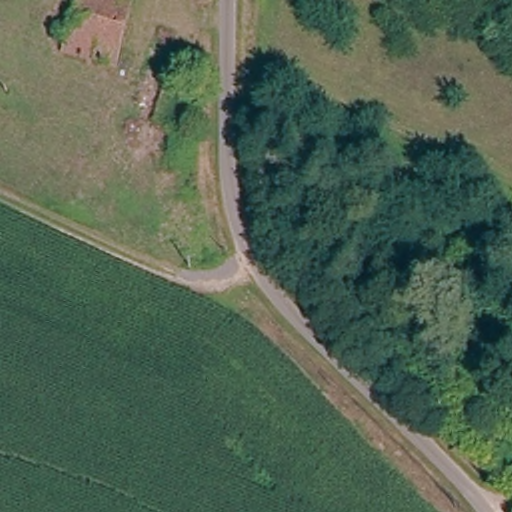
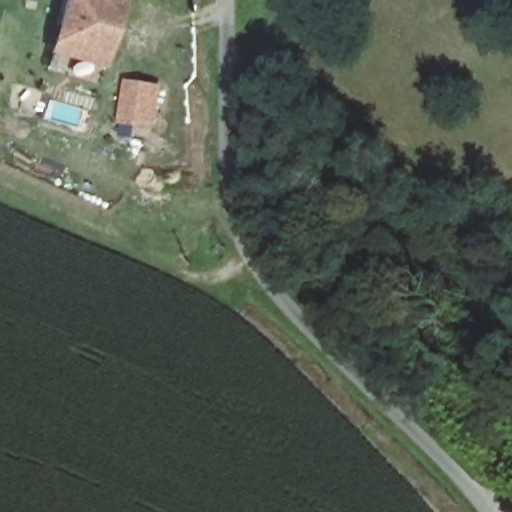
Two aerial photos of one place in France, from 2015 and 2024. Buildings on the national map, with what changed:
unchanged [(121,52),(67,39),(76,0),(124,0),(134,2),(121,52)]
new [(126,80),(162,87),(156,130),(119,124),(126,80)]

